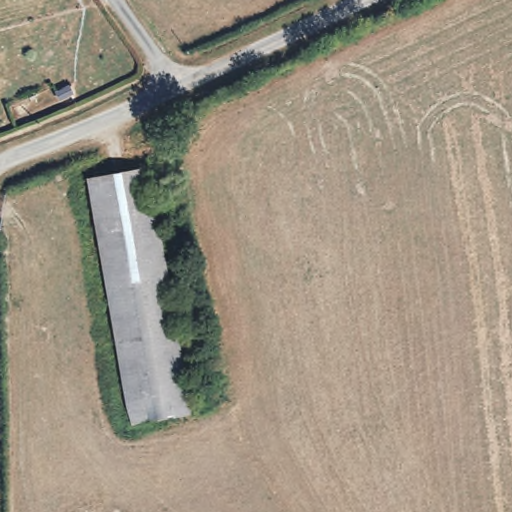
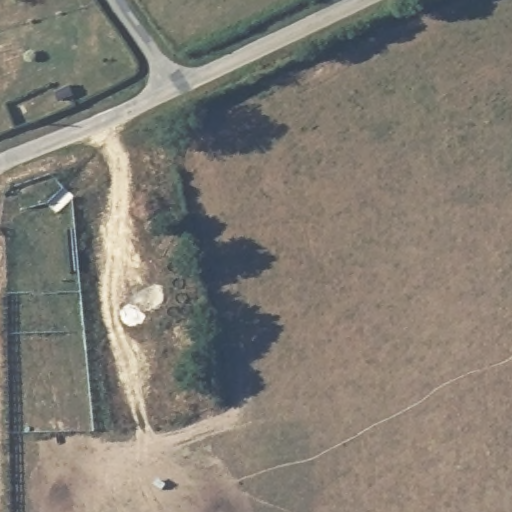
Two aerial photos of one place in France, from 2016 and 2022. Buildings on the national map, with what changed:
demolished [(149,167),(188,412),(128,422),(89,176),(149,167)]

